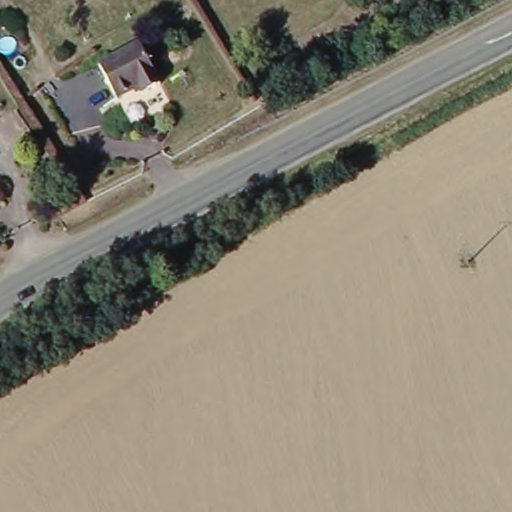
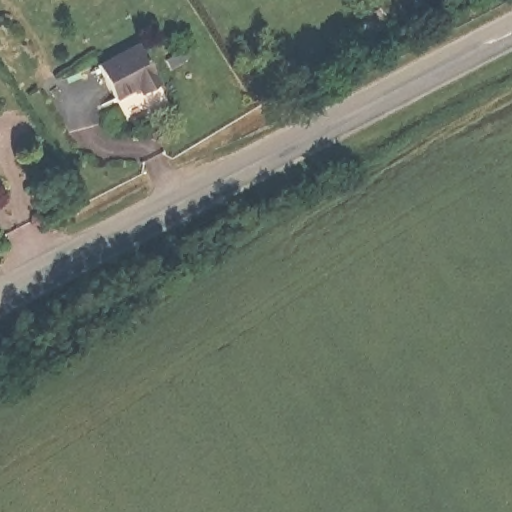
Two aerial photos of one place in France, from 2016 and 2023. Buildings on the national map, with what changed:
unchanged [(134,46),(155,85),(135,96),(130,90),(111,99),(96,67),(134,46)]

